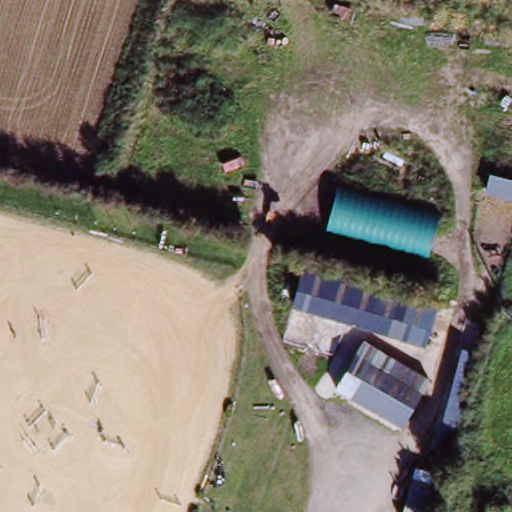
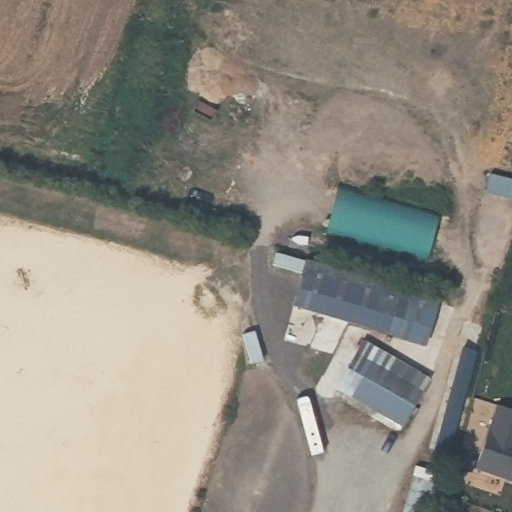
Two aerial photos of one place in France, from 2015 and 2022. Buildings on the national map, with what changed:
unchanged [(301,252),(438,288),(423,344),(288,304),(301,252)]
unchanged [(402,430),(333,394),(367,334),(433,371),(402,430)]
new [(512,411),(512,482),(472,468),(494,405),(512,411)]

